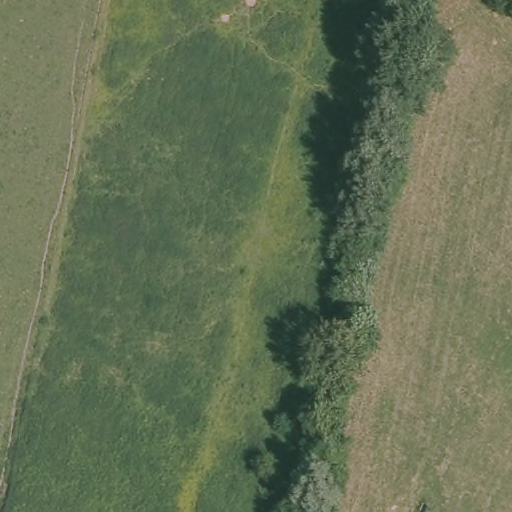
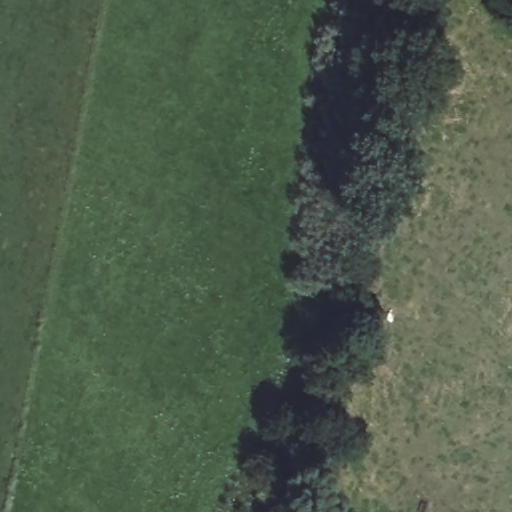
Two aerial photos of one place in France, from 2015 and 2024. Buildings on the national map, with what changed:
[]

